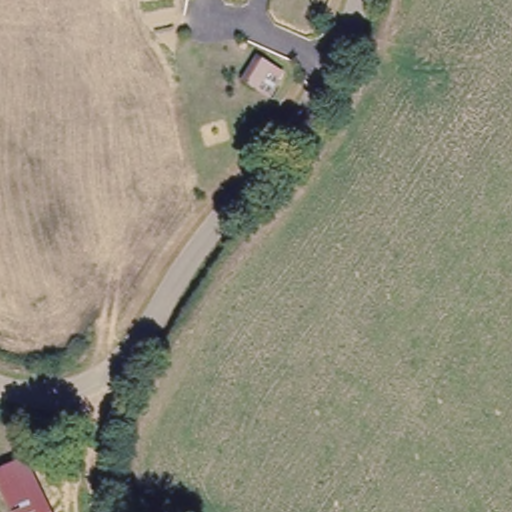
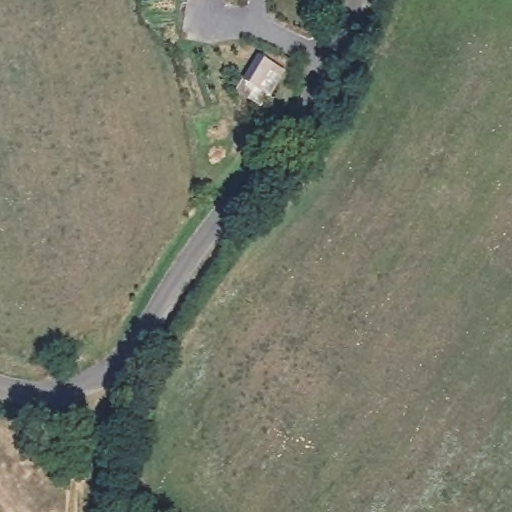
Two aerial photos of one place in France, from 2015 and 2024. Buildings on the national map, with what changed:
unchanged [(254,55),(279,69),(266,93),(240,78),(254,55)]
demolished [(0,498),(0,461),(24,451),(55,512),(6,512),(0,498)]

